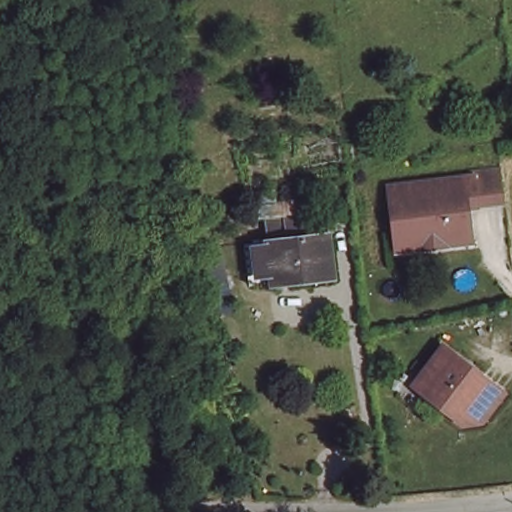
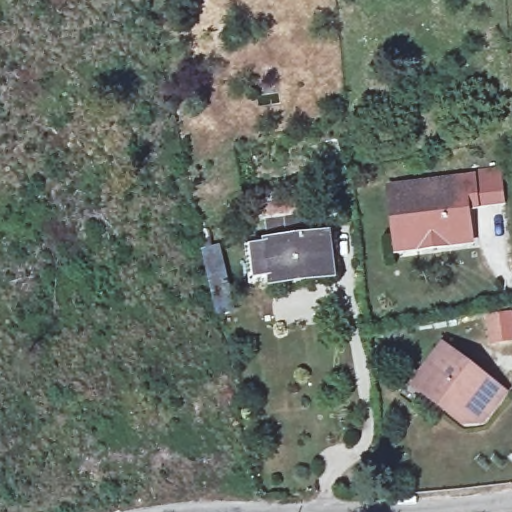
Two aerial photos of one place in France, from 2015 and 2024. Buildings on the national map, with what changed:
unchanged [(396,237),(390,187),(470,177),(469,172),(500,169),(505,201),(467,206),(469,229),(470,240),(448,242),(420,246),(397,248),(396,237)]
unchanged [(320,234),(326,274),(270,282),(263,242),(320,234)]
unchanged [(230,305),(210,310),(200,263),(198,256),(221,251),(230,305)]
new [(512,327),(512,338),(493,341),(491,341),(487,316),(490,316),(510,313),(512,327)]
unchanged [(507,392),(485,420),(465,423),(424,392),(415,385),(427,369),(445,344),(507,392)]

